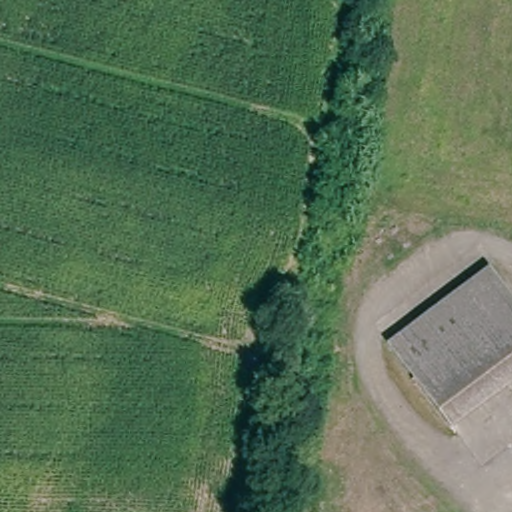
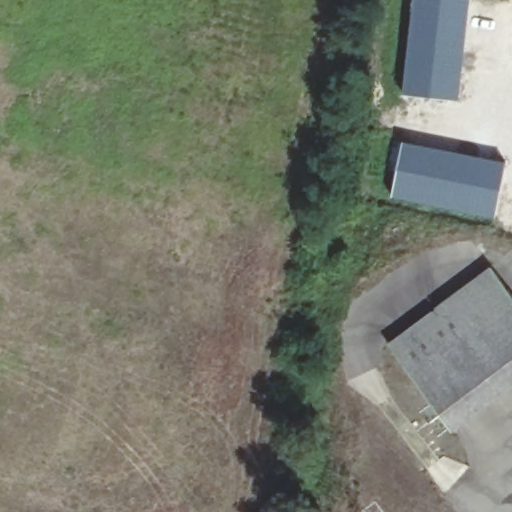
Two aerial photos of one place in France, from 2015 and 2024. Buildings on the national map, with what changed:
new [(458,99),(404,93),(414,0),(470,0),(458,99)]
new [(506,161),(495,218),(391,198),(402,141),(506,161)]
unchanged [(512,300),(512,376),(444,426),(381,341),(485,265),(512,300)]

